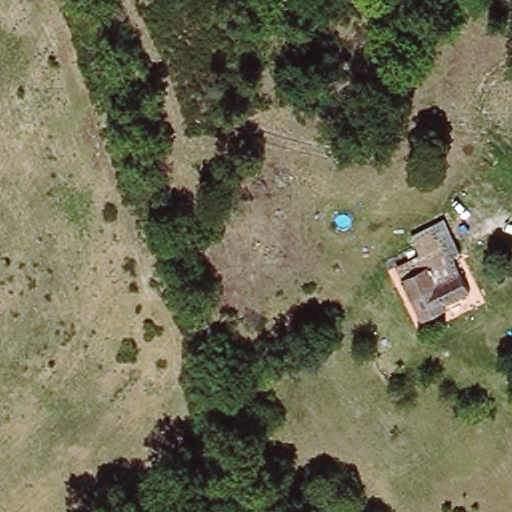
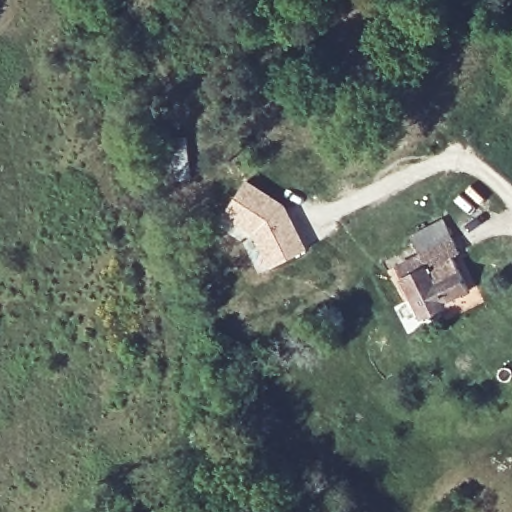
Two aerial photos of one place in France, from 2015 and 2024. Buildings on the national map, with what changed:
new [(254,233),(227,213),(246,180),(287,205),(308,249),(272,265),(254,233)]
unchanged [(422,257),(418,249),(451,236),(460,254),(453,257),(470,292),(420,315),(406,288),(397,268),(422,257)]

